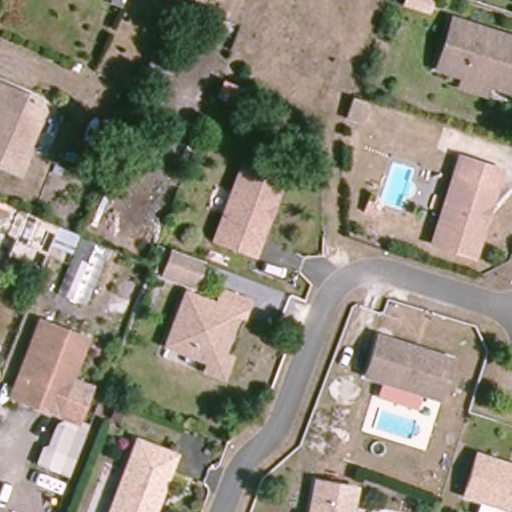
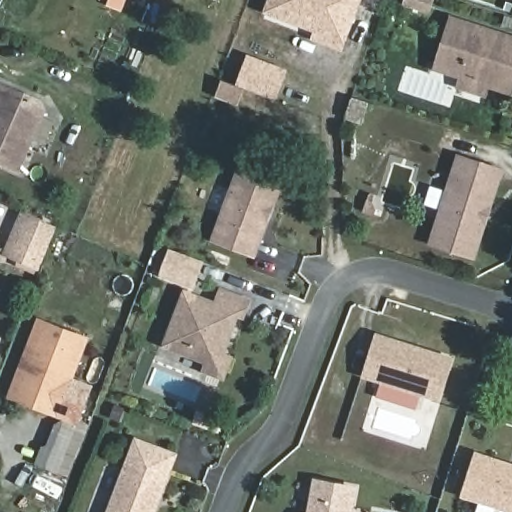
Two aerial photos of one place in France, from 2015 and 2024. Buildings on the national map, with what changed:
unchanged [(122,0),(119,6),(110,2),(111,0),(122,0)]
unchanged [(186,0),(196,0),(194,3),(186,0)]
new [(274,0),(362,0),(344,48),(327,42),(318,38),(321,30),(270,12),(274,0)]
unchanged [(455,91),(458,81),(455,80),(435,73),(450,24),(473,32),(512,45),(512,88),(509,97),(489,91),(485,101),(455,91)]
new [(239,88),(250,60),(285,73),(274,101),(243,89),(238,103),(220,96),(225,82),(239,88)]
unchanged [(44,113),(19,172),(0,164),(0,86),(40,103),(44,113)]
unchanged [(359,121),(345,117),(351,98),(365,102),(359,121)]
unchanged [(472,257),(430,244),(457,157),(500,171),(488,208),(483,223),(472,257)]
unchanged [(253,255),(214,240),(242,166),(281,181),(272,207),(267,219),(253,255)]
new [(38,270),(35,269),(33,273),(14,265),(15,261),(0,254),(18,210),(55,225),(77,234),(69,253),(49,244),(38,270)]
unchanged [(193,283),(165,273),(173,252),(201,262),(193,283)]
demolished [(125,272),(143,278),(130,314),(113,307),(125,272)]
unchanged [(206,362),(164,346),(184,294),(215,305),(221,291),(247,302),(242,316),(236,314),(221,355),(230,358),(222,378),(203,371),(206,362)]
unchanged [(89,339),(60,413),(18,397),(15,396),(44,321),(46,323),(89,339)]
unchanged [(364,375),(377,336),(450,359),(438,398),(364,375)]
unchanged [(154,512),(110,512),(136,442),(175,456),(159,499),(154,511),(154,512)]
unchanged [(462,496),(475,455),(512,467),(512,512),(462,496)]
unchanged [(315,481),(355,489),(350,512),(309,512),(315,481)]

